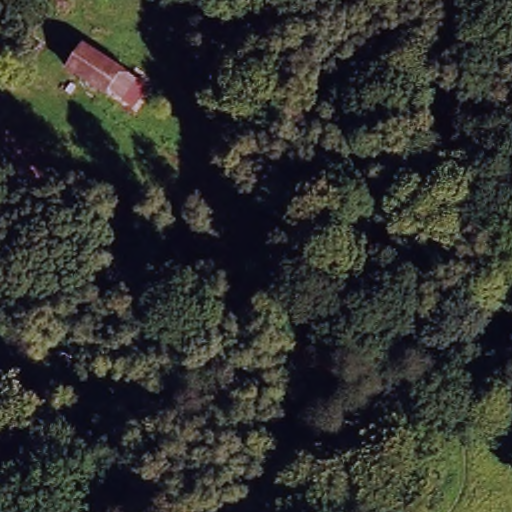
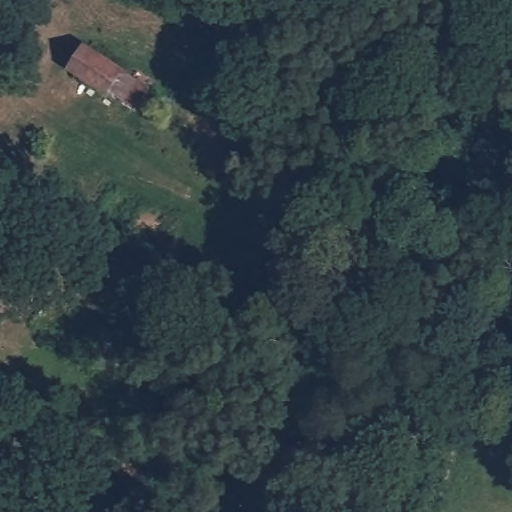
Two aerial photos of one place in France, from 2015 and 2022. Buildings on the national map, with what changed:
unchanged [(145,116),(129,105),(107,87),(102,94),(69,67),(82,49),(138,90),(155,102),(145,116)]

